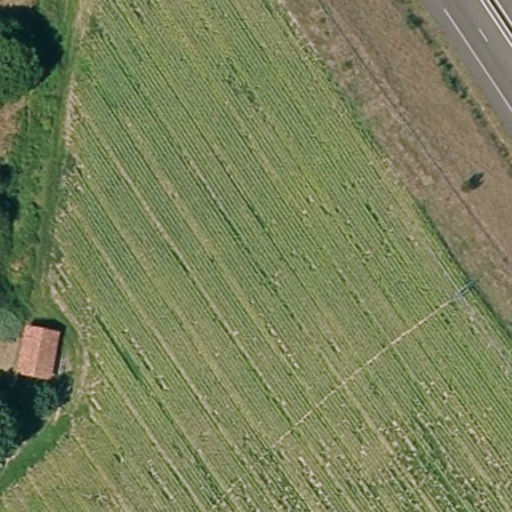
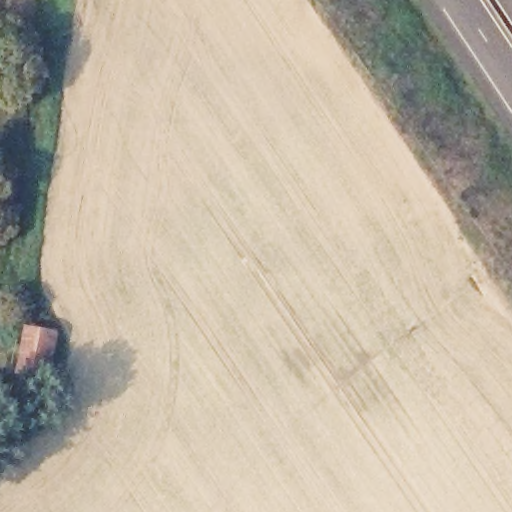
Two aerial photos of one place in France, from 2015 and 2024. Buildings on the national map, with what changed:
unchanged [(48,378),(28,376),(13,375),(22,329),(39,331),(57,334),(48,378)]

